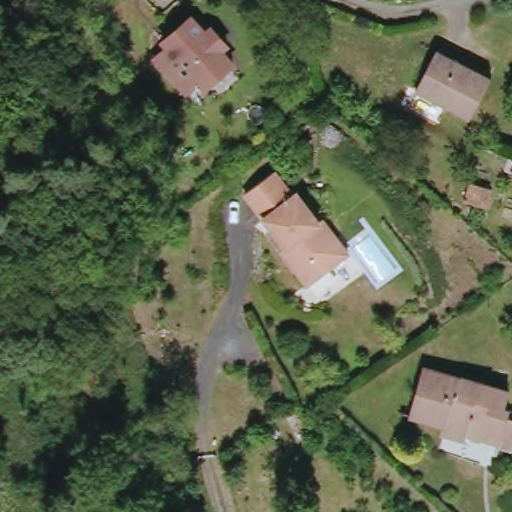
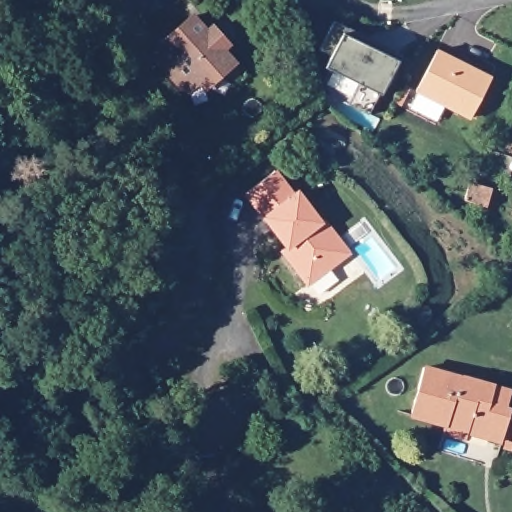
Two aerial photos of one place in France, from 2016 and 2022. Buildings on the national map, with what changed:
unchanged [(204,86),(197,79),(183,91),(153,56),(167,45),(163,40),(192,16),(206,32),(213,26),(227,43),(220,49),(233,63),(204,86)]
new [(334,22),(400,56),(370,116),(348,106),(360,81),(332,67),(337,59),(320,50),(334,22)]
unchanged [(492,78),(472,119),(417,91),(437,51),(492,78)]
unchanged [(287,248),(244,196),(262,181),(273,173),(292,196),(295,193),(319,221),(322,219),(348,252),(322,273),(308,285),(289,261),(282,252),(287,248)]
unchanged [(488,207),(465,200),(470,183),(493,190),(488,207)]
unchanged [(502,445),(473,437),(469,435),(467,443),(445,437),(447,430),(410,420),(424,372),(511,396),(506,413),(510,414),(512,414),(512,453),(501,451),(502,445)]

